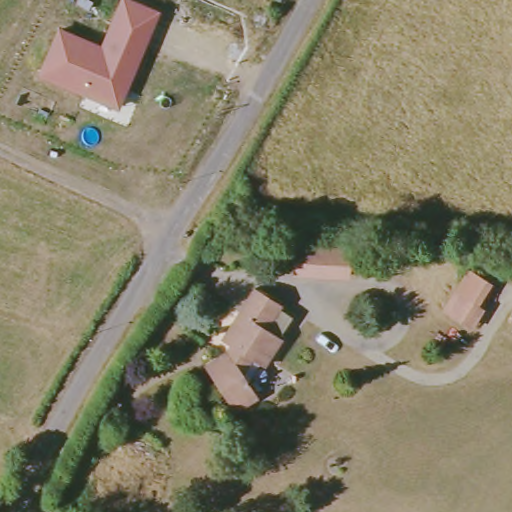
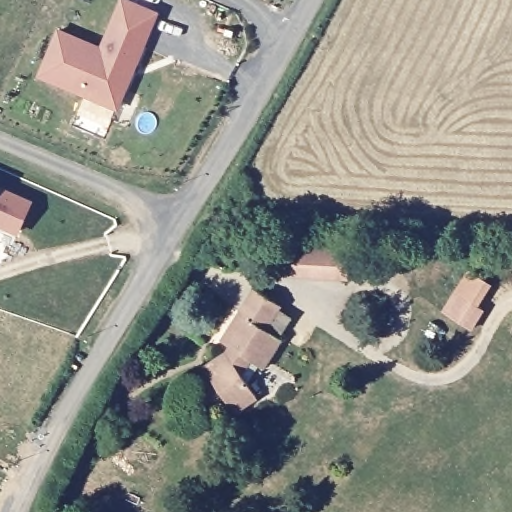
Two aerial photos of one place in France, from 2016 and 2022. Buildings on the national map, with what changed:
unchanged [(103,48),(124,0),(130,0),(160,12),(120,107),(43,74),(61,30),(103,48)]
new [(32,201),(18,232),(0,226),(0,185),(32,201)]
unchanged [(345,246),(343,276),(291,274),(293,244),(345,246)]
unchanged [(488,282),(475,304),(485,310),(473,331),(446,314),(471,272),(488,282)]
unchanged [(250,397),(226,408),(198,364),(220,355),(225,346),(215,340),(247,287),(272,302),(258,327),(272,336),(255,363),(254,362),(241,382),(250,397)]
unchanged [(122,393),(115,409),(118,411),(105,436),(94,431),(115,390),(122,393)]

